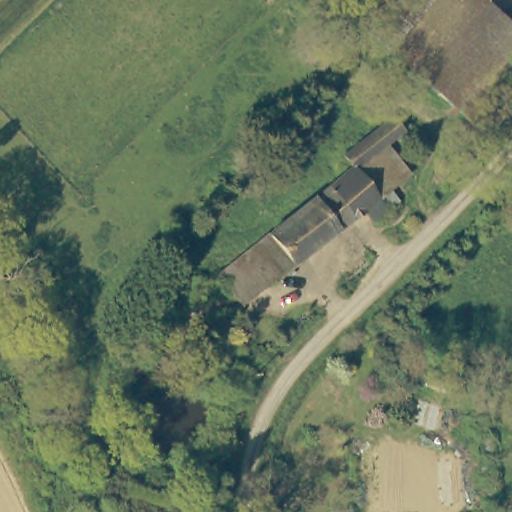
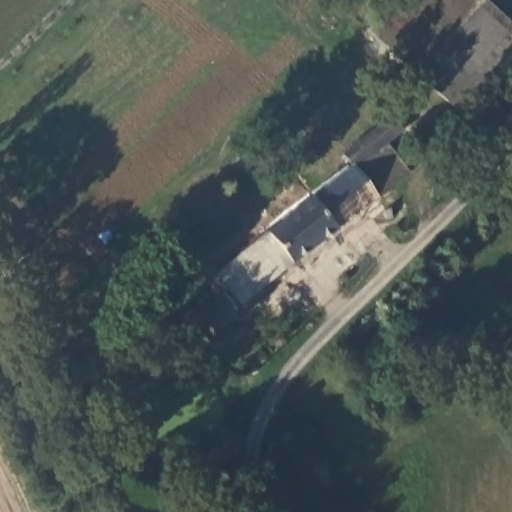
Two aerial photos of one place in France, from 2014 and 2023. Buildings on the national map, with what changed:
unchanged [(512,32),(451,103),(380,40),(416,0),(485,0),(512,24),(512,32)]
unchanged [(512,125),(512,126),(496,143),(451,103),(512,32),(512,92),(496,110),(512,125)]
unchanged [(398,199),(387,208),(371,220),(363,210),(320,244),(314,248),(290,216),(353,164),(348,159),(344,152),(365,136),(392,115),(405,130),(386,145),(409,174),(399,181),(390,189),(398,199)]
unchanged [(290,216),(314,248),(291,265),(267,234),(290,216)]
unchanged [(291,265),(242,305),(219,273),(267,234),(291,265)]
unchanged [(201,342),(190,360),(173,349),(185,332),(201,342)]

